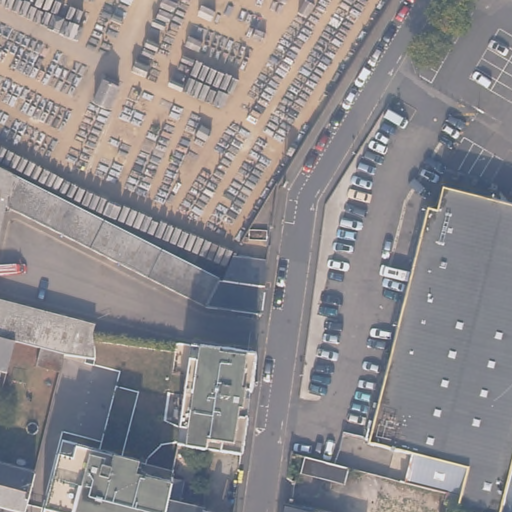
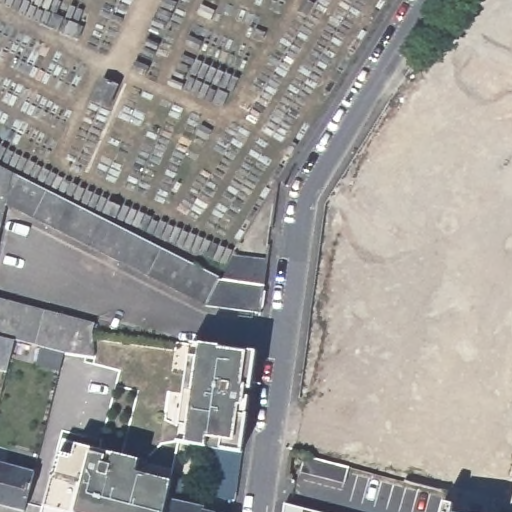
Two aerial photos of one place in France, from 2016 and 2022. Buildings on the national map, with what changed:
unchanged [(50,188),(148,238),(205,267),(221,274),(220,276),(263,281),(260,308),(206,303),(93,246),(5,201),(0,222),(0,163),(15,170),(50,188)]
demolished [(497,512),(447,512),(450,498),(441,496),(443,488),(405,478),(411,450),(367,439),(426,201),(434,202),(440,179),(512,197),(512,452),(497,512)]
unchanged [(232,251),(267,256),(263,281),(220,276),(221,274),(232,251)]
unchanged [(40,343),(14,336),(0,333),(0,294),(40,305),(94,320),(91,328),(94,353),(64,349),(59,368),(35,362),(40,343)]
unchanged [(6,366),(0,365),(0,333),(14,336),(6,366)]
unchanged [(225,446),(213,444),(185,439),(191,372),(195,341),(200,342),(203,342),(258,349),(255,375),(254,384),(250,412),(247,431),(245,448),(225,446)]
unchanged [(61,450),(74,453),(77,441),(96,446),(115,451),(142,458),(139,470),(175,479),(168,512),(49,512),(45,511),(61,450)]
demolished [(497,512),(512,452),(512,512),(497,512)]
unchanged [(236,512),(205,512),(206,507),(224,511),(225,501),(231,455),(244,457),(236,509),(236,512)]
unchanged [(332,465),(346,469),(342,485),(300,475),(305,458),(332,465)]
unchanged [(22,511),(0,506),(0,464),(32,473),(22,511)]
unchanged [(177,473),(188,475),(184,499),(207,505),(207,506),(206,507),(205,512),(168,512),(175,479),(177,473)]
demolished [(382,492),(442,508),(442,510),(442,512),(377,512),(379,504),(382,492)]
demolished [(331,511),(331,512),(286,512),(287,499),(331,511)]

